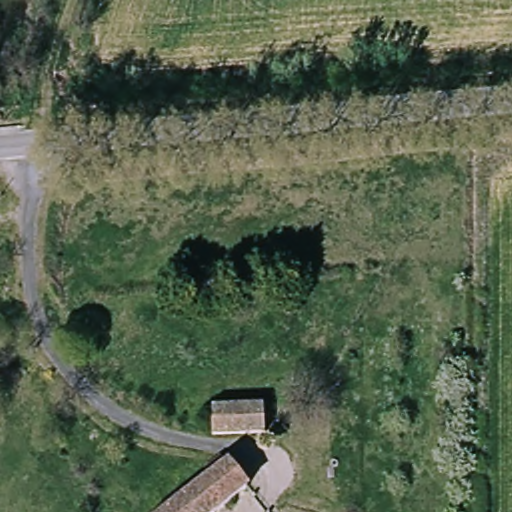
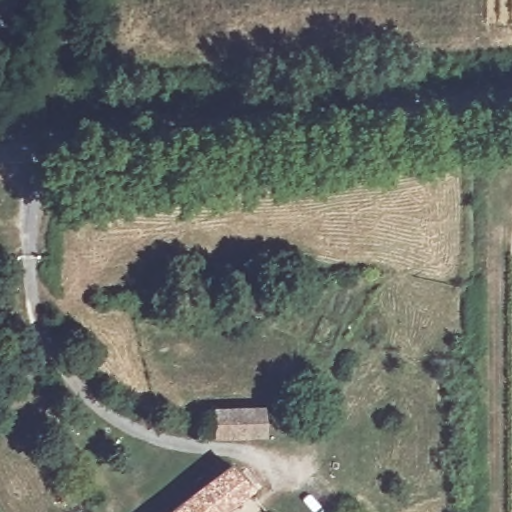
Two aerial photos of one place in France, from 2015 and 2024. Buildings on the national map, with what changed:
unchanged [(209,443),(213,413),(262,415),(265,440),(240,442),(209,443)]
unchanged [(197,489),(193,482),(209,469),(214,476),(220,471),(241,499),(218,512),(169,512),(197,489)]

